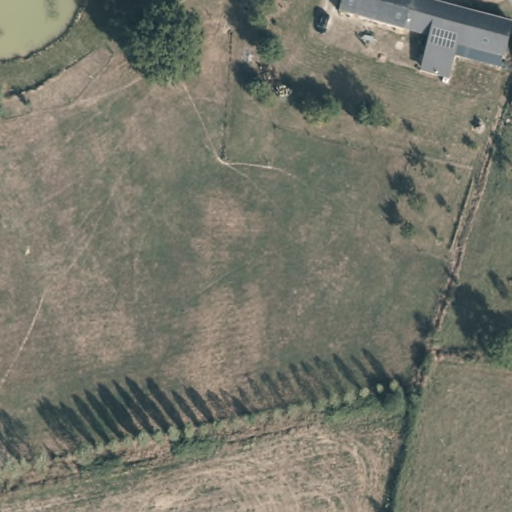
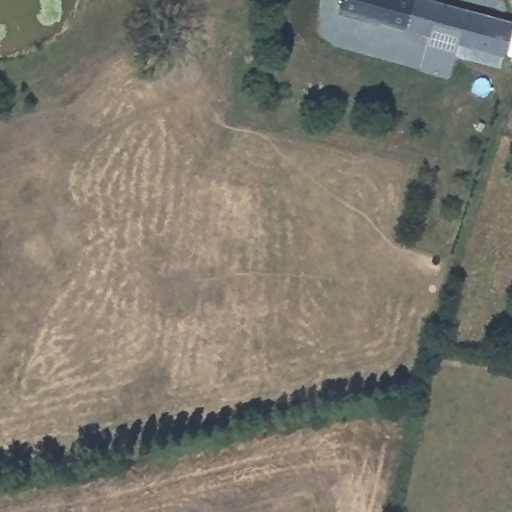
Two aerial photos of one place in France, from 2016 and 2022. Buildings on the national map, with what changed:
unchanged [(510,23),(501,54),(458,42),(428,34),(415,30),(402,30),(343,14),(347,0),(424,0),(510,23)]
unchanged [(449,78),(418,70),(428,34),(458,42),(449,78)]

